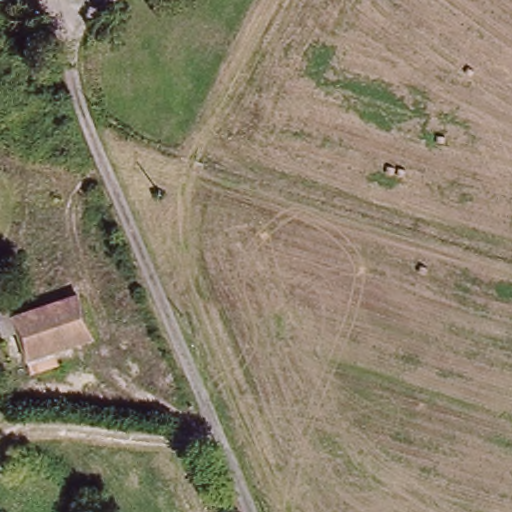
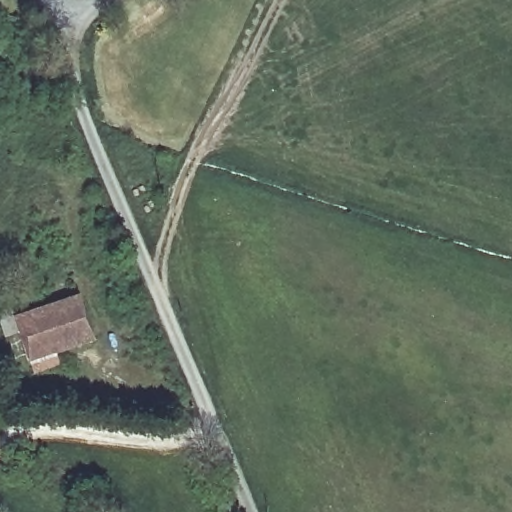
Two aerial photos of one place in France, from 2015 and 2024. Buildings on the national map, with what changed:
unchanged [(76,287),(95,328),(55,345),(61,356),(35,367),(12,315),(76,287)]

